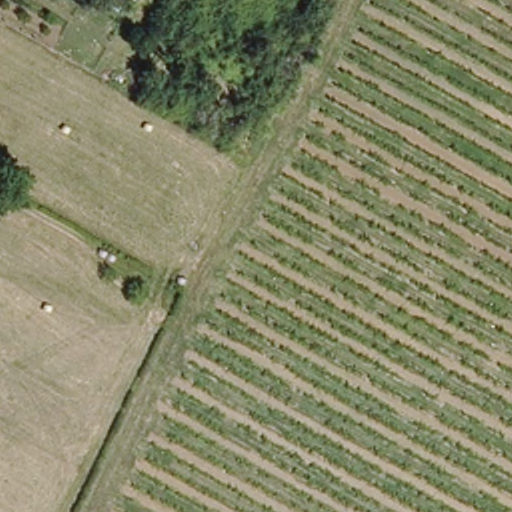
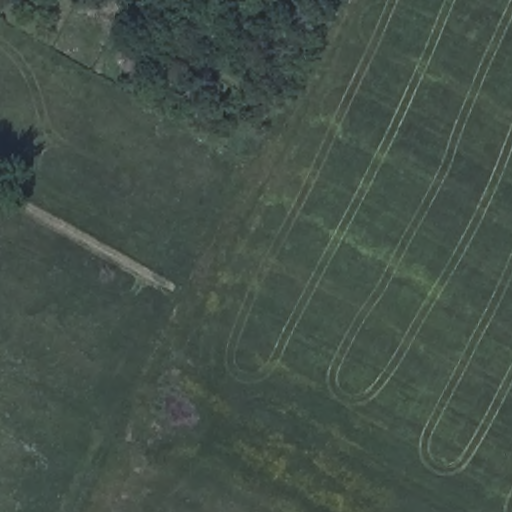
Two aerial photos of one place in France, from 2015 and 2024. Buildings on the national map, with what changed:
[]

